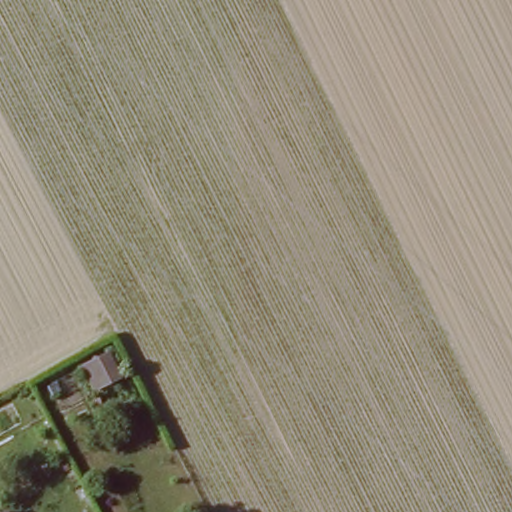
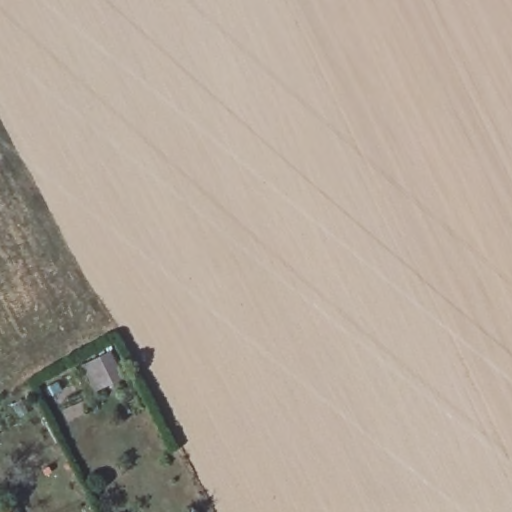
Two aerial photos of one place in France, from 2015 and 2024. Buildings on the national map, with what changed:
unchanged [(8,509),(9,512),(0,512),(8,509)]

